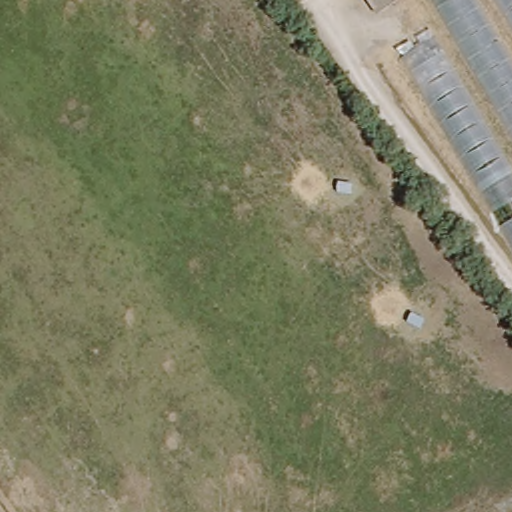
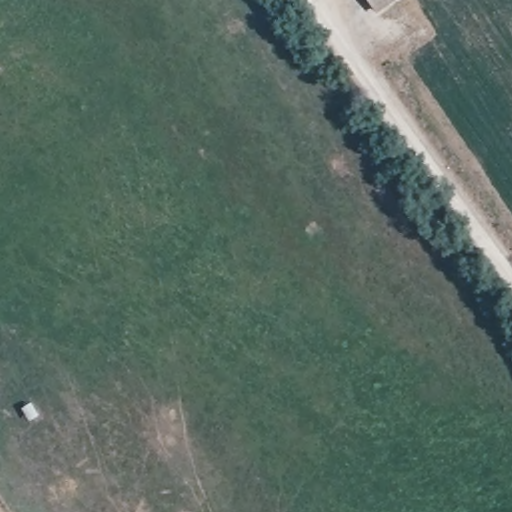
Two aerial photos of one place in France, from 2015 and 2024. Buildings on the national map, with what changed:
unchanged [(370,0),(388,0),(377,9),(370,0)]
demolished [(512,0),(512,242),(409,70),(456,41),(433,0),(512,0)]

